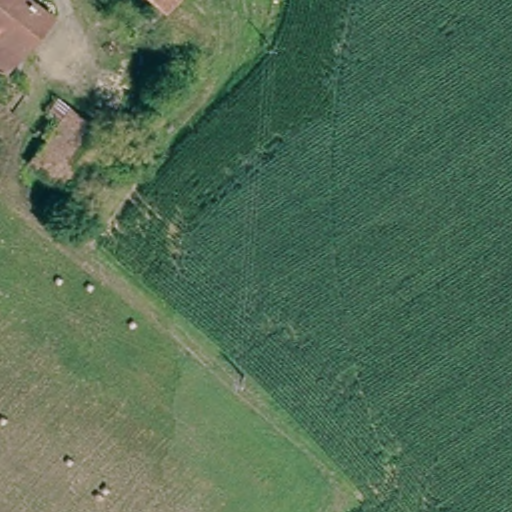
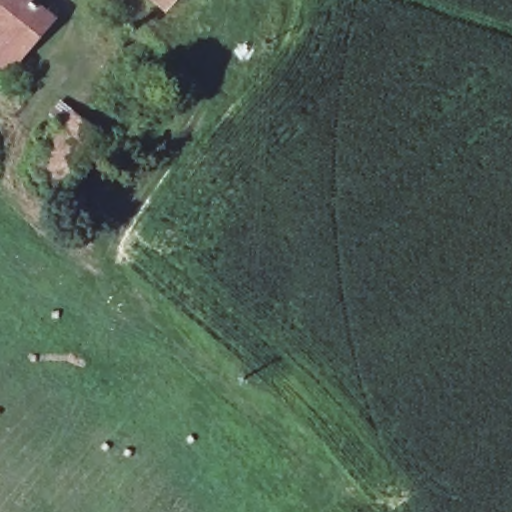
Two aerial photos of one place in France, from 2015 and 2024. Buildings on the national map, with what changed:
unchanged [(53,15),(26,51),(31,56),(14,78),(0,68),(0,0),(34,0),(53,15)]
unchanged [(169,14),(154,0),(179,0),(169,14)]
unchanged [(108,138),(70,191),(32,163),(70,110),(108,138)]

